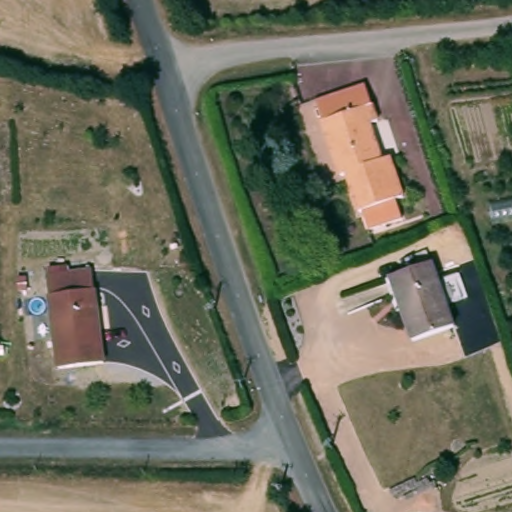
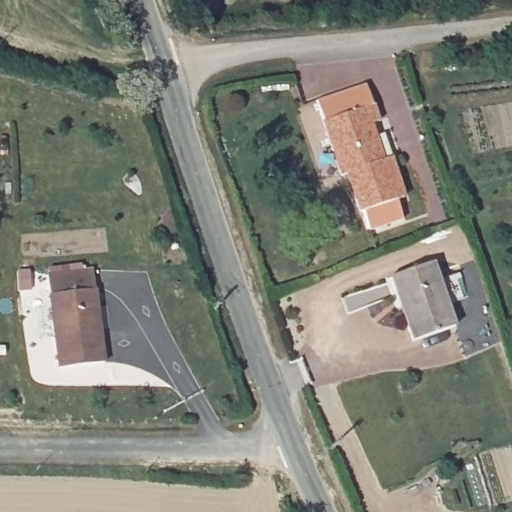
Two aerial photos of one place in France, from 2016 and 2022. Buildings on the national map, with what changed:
unchanged [(370,84),(383,122),(371,126),(384,165),(397,160),(410,199),(402,202),(409,221),(380,231),(373,209),(368,210),(355,174),(346,176),(319,101),(370,84)]
unchanged [(441,260),(461,325),(416,337),(396,272),(441,260)]
unchanged [(96,269),(102,310),(92,312),(96,333),(105,332),(110,365),(62,373),(47,275),(96,269)]

